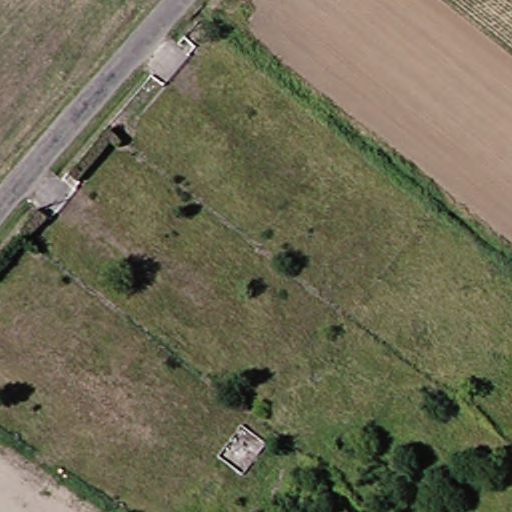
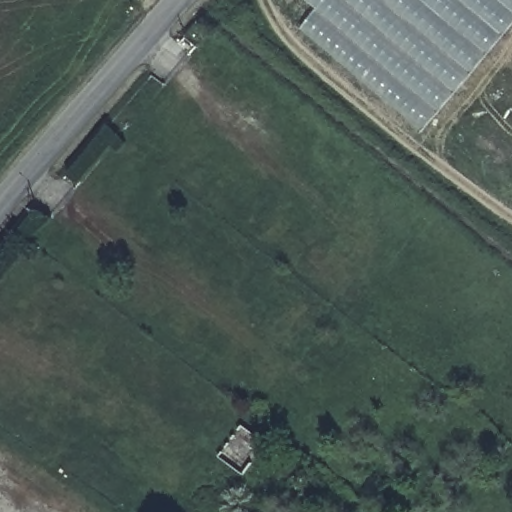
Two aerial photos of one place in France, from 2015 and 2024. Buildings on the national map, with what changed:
new [(319,8),(309,0),(512,0),(512,27),(425,130),(303,27),(319,8)]

